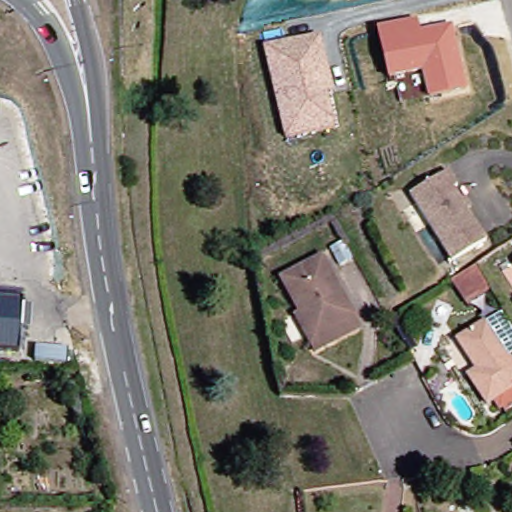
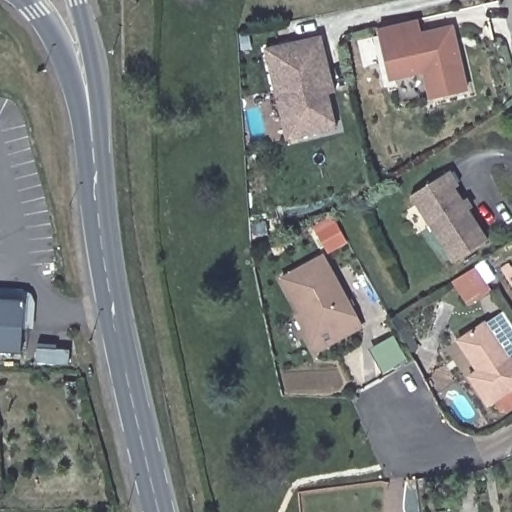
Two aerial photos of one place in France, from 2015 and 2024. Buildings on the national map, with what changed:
unchanged [(464,93),(428,101),(421,74),(387,82),(378,46),(374,31),(396,26),(413,22),(417,37),(448,30),(464,93)]
unchanged [(291,138),(274,65),(269,44),(296,38),(326,32),(331,53),(339,88),(333,90),(341,126),(291,138)]
unchanged [(489,238),(456,262),(411,195),(449,168),(459,183),(454,185),(489,238)]
unchanged [(297,316),(279,280),(319,258),(355,328),(310,352),(303,338),(293,319),(297,316)]
unchanged [(511,264),(512,263),(512,267),(511,264)]
unchanged [(451,281),(474,266),(488,287),(466,303),(451,281)]
unchanged [(23,354),(0,353),(0,299),(26,301),(23,354)]
unchanged [(492,411),(487,400),(479,405),(464,379),(470,374),(450,343),(478,324),(494,314),(512,342),(512,351),(500,358),(512,377),(512,398),(492,411)]

